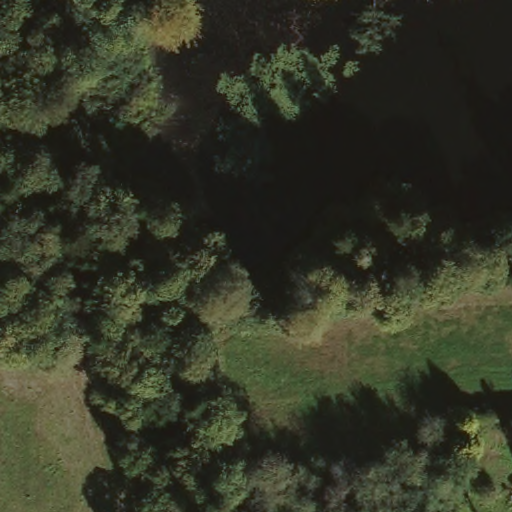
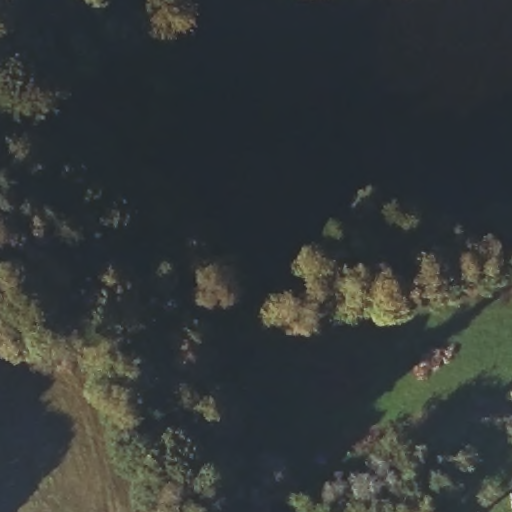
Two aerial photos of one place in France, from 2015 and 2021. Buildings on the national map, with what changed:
[]

